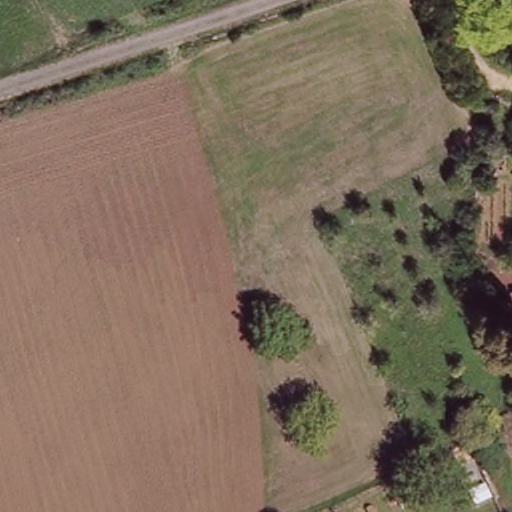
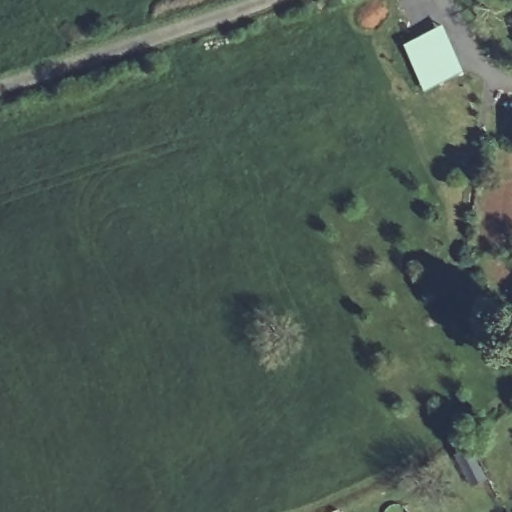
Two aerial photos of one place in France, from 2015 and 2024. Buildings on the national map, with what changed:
new [(442,23),(465,72),(423,91),(402,43),(442,23)]
new [(472,449),(487,481),(475,488),(459,457),(472,449)]

